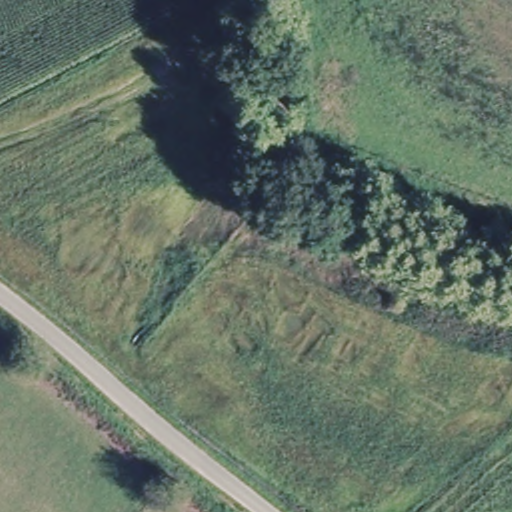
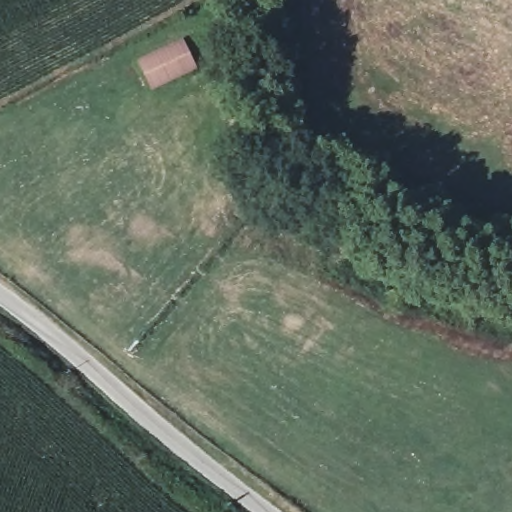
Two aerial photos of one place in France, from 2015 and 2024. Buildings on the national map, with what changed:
new [(184,39),(198,70),(152,90),(139,59),(184,39)]

